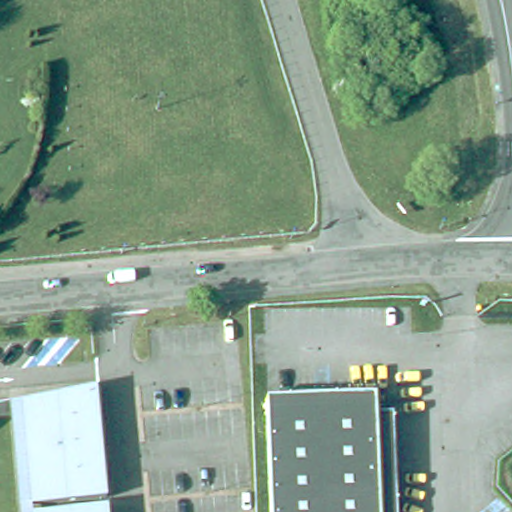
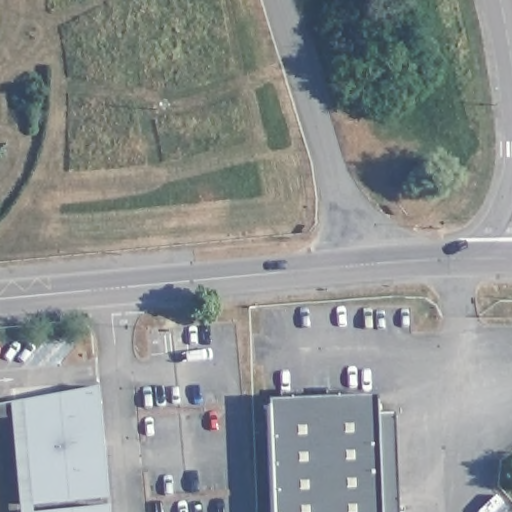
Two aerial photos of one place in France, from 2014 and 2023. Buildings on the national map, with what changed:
unchanged [(109,506),(34,512),(20,512),(10,400),(101,394),(109,506)]
unchanged [(374,398),(374,417),(393,417),(395,510),(395,512),(269,512),(266,401),(374,398)]
unchanged [(109,512),(34,512),(109,506),(109,512)]

